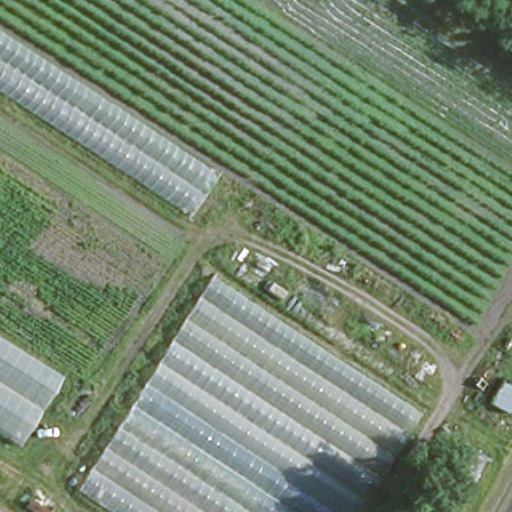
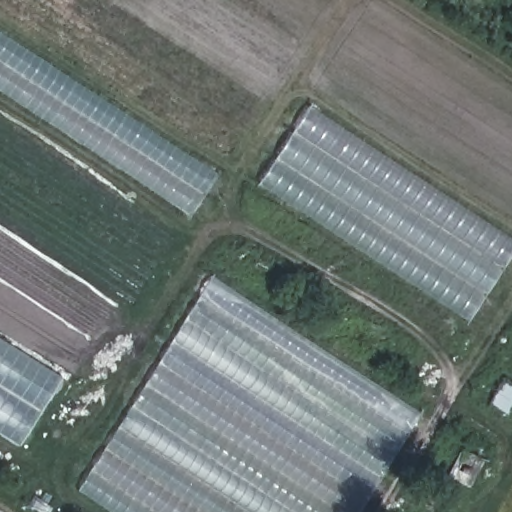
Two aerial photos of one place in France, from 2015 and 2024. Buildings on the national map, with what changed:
unchanged [(192,217),(0,91),(0,32),(219,177),(192,217)]
new [(472,317),(260,183),(312,103),(512,234),(512,255),(472,317)]
unchanged [(420,418),(361,512),(114,512),(80,490),(215,275),(420,418)]
unchanged [(0,433),(0,340),(64,380),(20,446),(0,433)]
new [(508,415),(491,406),(503,380),(512,385),(512,408),(508,415)]

